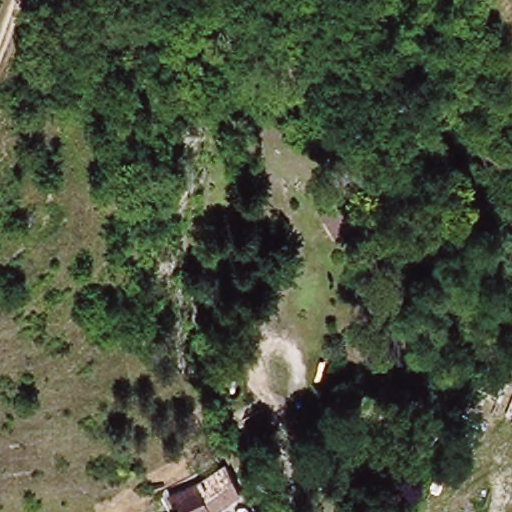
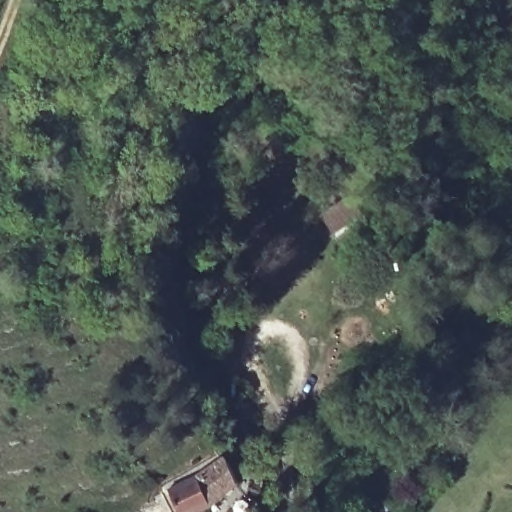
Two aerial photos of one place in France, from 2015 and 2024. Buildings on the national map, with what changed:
unchanged [(355,245),(338,234),(329,228),(347,198),(357,204),(375,218),(355,245)]
unchanged [(323,415),(334,393),(338,386),(360,397),(356,404),(345,426),(323,415)]
unchanged [(247,493),(185,511),(176,480),(239,462),(247,493)]

